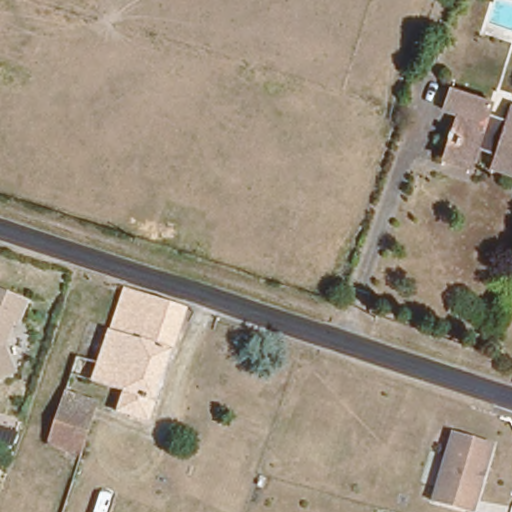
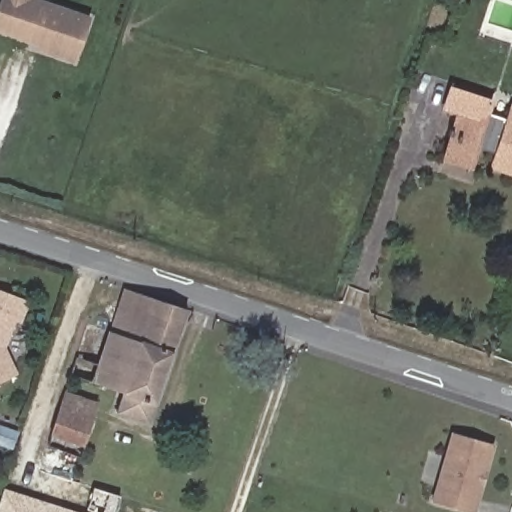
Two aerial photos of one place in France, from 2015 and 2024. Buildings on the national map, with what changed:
new [(39,45),(0,32),(0,0),(44,0),(90,15),(74,63),(36,50),(39,45)]
unchanged [(493,166),(497,153),(478,147),(473,165),(446,157),(460,113),(446,108),(452,89),(492,101),(489,113),(507,119),(511,107),(512,107),(512,172),(493,166)]
unchanged [(187,310),(151,423),(119,412),(125,392),(71,375),(89,324),(112,331),(126,289),(187,310)]
unchanged [(14,322),(4,346),(17,374),(0,382),(0,291),(29,302),(21,324),(14,322)]
unchanged [(66,391),(100,402),(81,460),(47,450),(66,391)]
unchanged [(485,470),(478,472),(476,478),(480,483),(470,512),(465,512),(430,500),(453,428),(493,441),(485,470)]
new [(78,512),(0,512),(0,501),(4,488),(78,512)]

